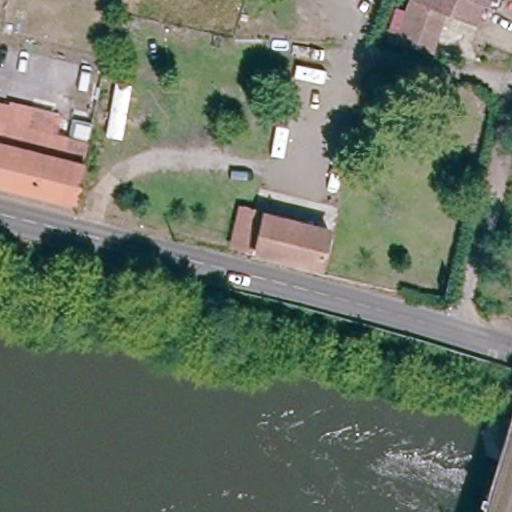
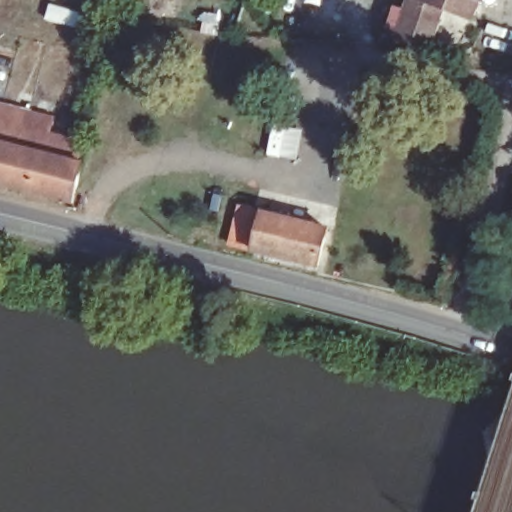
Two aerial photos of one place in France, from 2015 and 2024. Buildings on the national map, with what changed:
unchanged [(478,20),(447,8),(429,52),(399,45),(412,0),(485,0),(478,20)]
unchanged [(89,145),(74,204),(0,184),(0,121),(89,145)]
unchanged [(239,206),(327,229),(317,267),(230,244),(239,206)]

